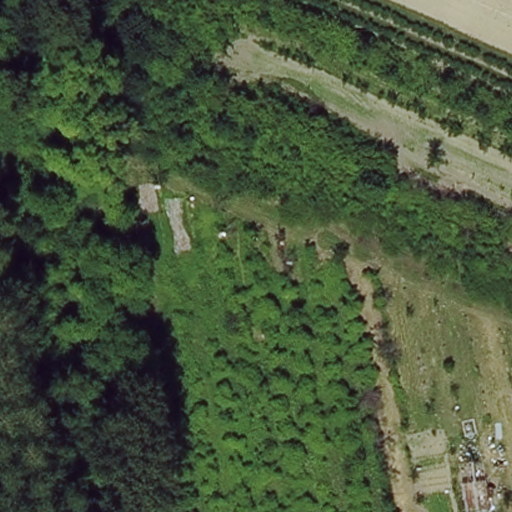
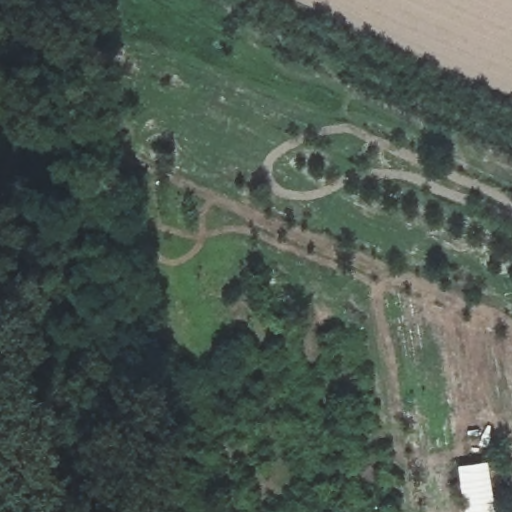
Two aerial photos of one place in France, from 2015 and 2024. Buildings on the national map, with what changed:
new [(496,512),(465,512),(459,466),(489,462),(496,512)]

